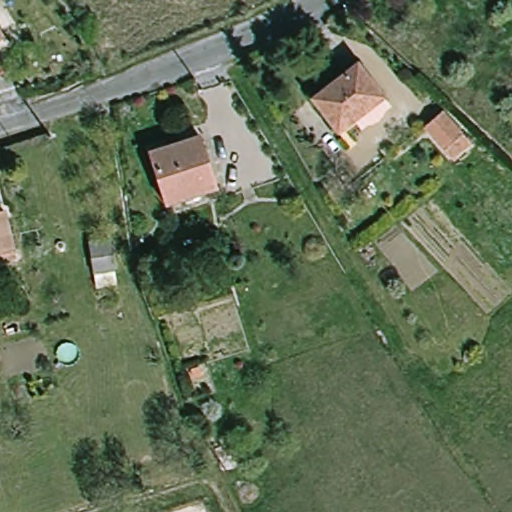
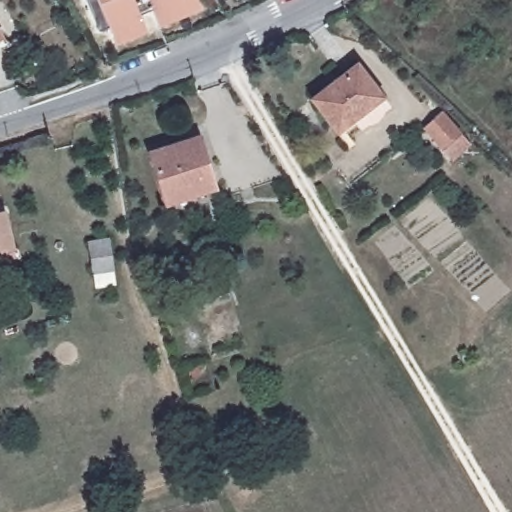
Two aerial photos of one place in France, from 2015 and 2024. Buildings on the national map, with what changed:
new [(160,27),(153,10),(141,15),(148,32),(116,45),(110,28),(98,33),(85,0),(199,0),(202,10),(160,27)]
demolished [(101,53),(96,42),(108,36),(113,48),(101,53)]
unchanged [(388,105),(358,128),(352,121),(336,134),(310,100),(356,64),(388,105)]
unchanged [(450,161),(441,151),(422,129),(441,112),(461,134),(470,144),(450,161)]
unchanged [(198,137),(215,190),(165,206),(147,154),(198,137)]
unchanged [(0,260),(0,213),(3,212),(12,250),(14,256),(0,260)]
unchanged [(108,240),(113,271),(92,274),(87,243),(108,240)]

